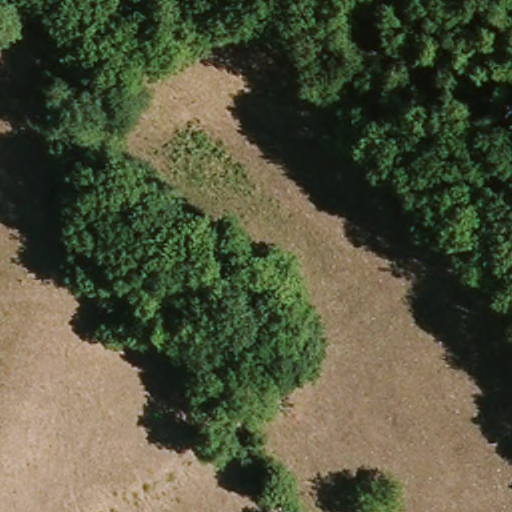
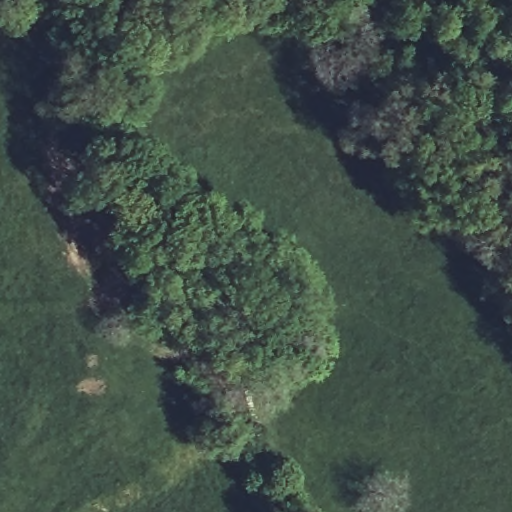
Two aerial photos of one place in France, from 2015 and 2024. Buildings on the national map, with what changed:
[]

